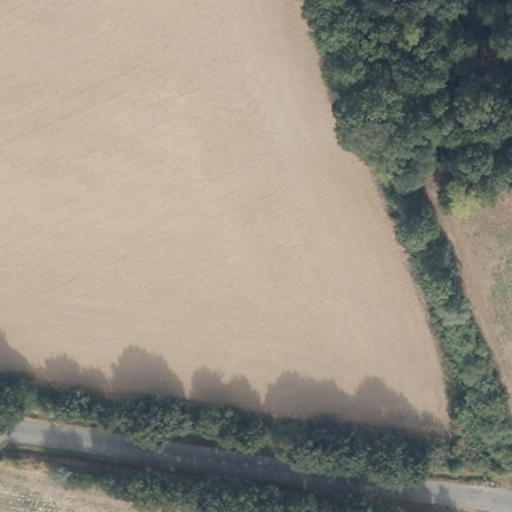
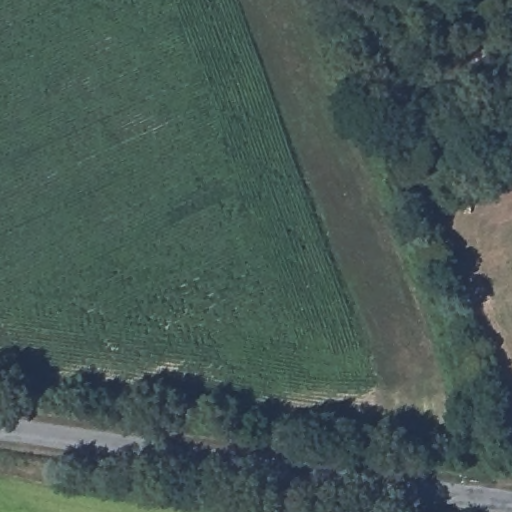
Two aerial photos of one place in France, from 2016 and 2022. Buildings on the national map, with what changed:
[]

